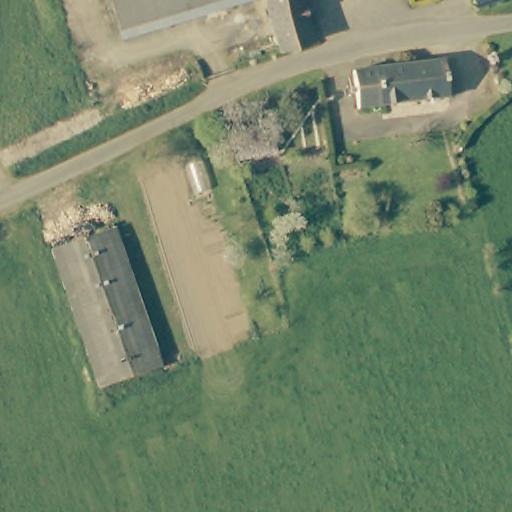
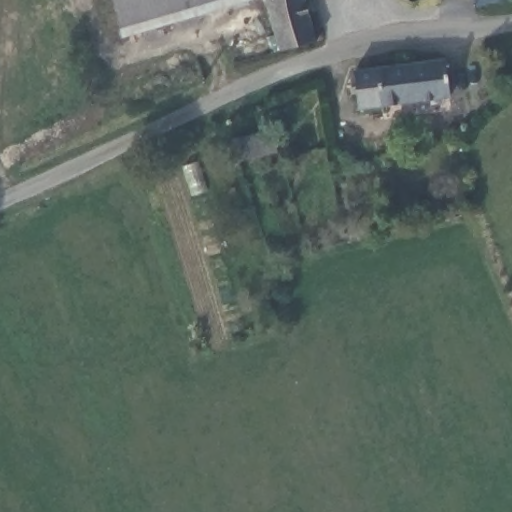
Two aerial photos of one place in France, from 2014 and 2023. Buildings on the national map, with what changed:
unchanged [(114,0),(190,0),(120,18),(114,0)]
unchanged [(313,36),(275,45),(264,0),(304,0),(313,36)]
unchanged [(441,56),(446,88),(372,100),(357,102),(349,70),(365,67),(441,56)]
unchanged [(228,135),(273,124),(277,149),(233,158),(228,135)]
demolished [(105,382),(51,249),(111,223),(163,359),(105,382)]

